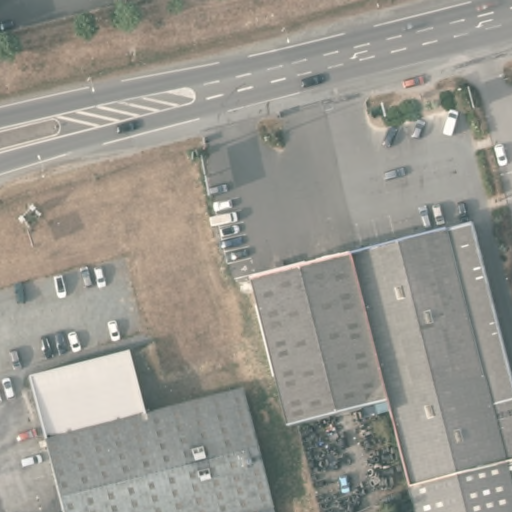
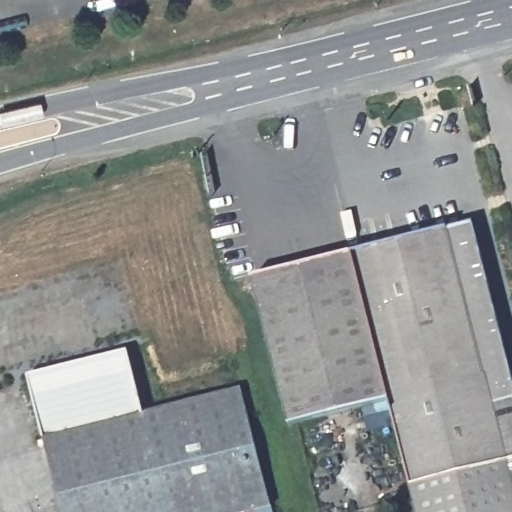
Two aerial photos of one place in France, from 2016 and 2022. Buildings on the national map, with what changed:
unchanged [(388,397),(288,422),(252,278),(474,222),(512,372),(512,512),(418,512),(388,397)]
unchanged [(43,438),(26,375),(127,352),(142,412),(43,438)]
unchanged [(233,512),(62,512),(43,438),(243,386),(272,502),(233,512)]

